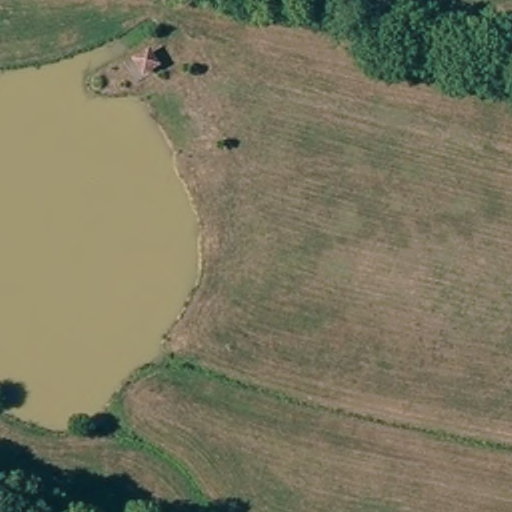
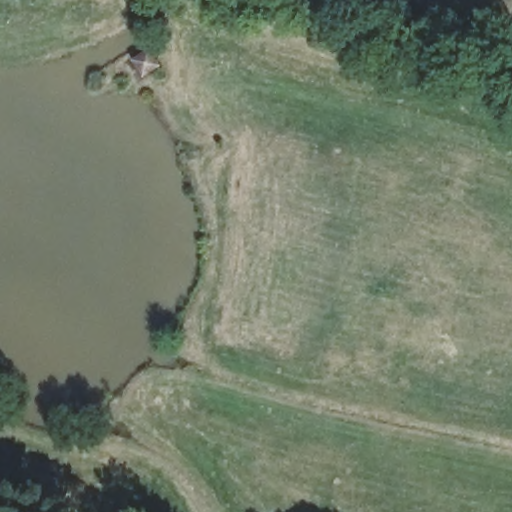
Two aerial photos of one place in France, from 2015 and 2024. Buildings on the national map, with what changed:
unchanged [(149,46),(160,69),(144,79),(133,59),(149,46)]

